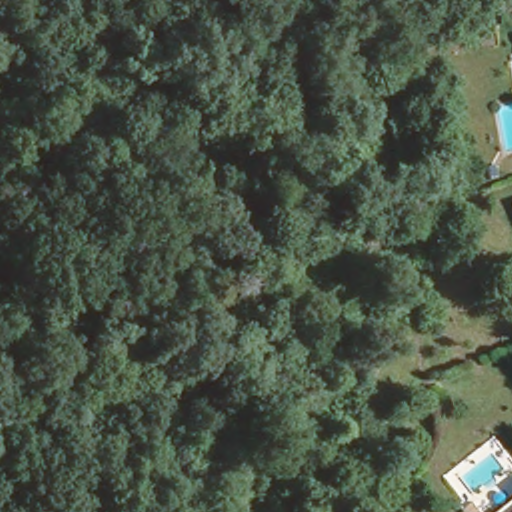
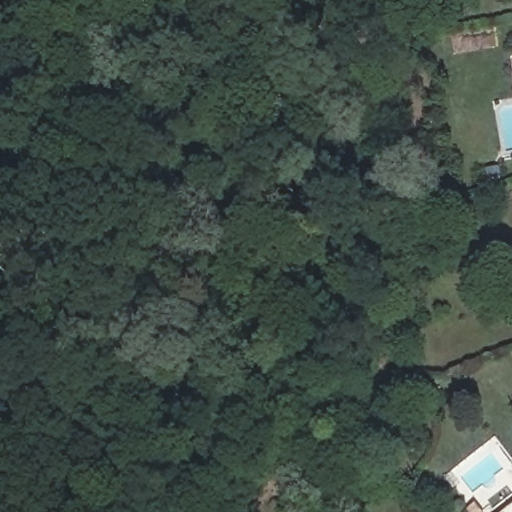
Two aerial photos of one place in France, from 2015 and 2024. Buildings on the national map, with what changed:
unchanged [(499,512),(512,502),(512,512),(499,512)]

